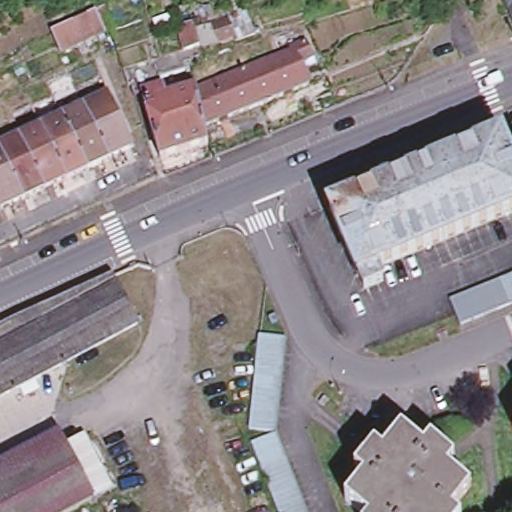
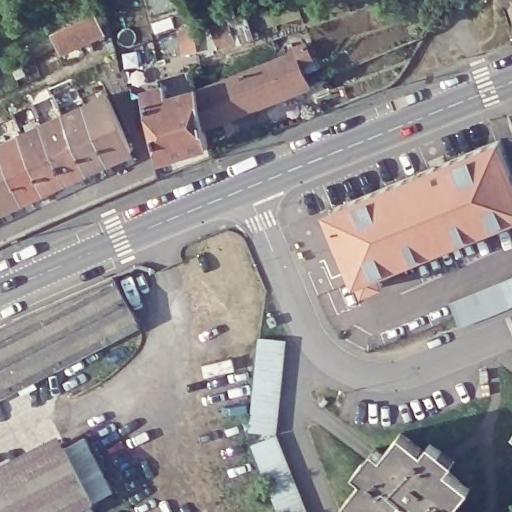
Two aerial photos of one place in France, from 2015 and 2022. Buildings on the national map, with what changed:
unchanged [(68,26),(81,20),(95,14),(104,34),(89,40),(76,46),(63,53),(54,33),(66,27),(68,26)]
unchanged [(156,80),(156,81),(159,90),(138,97),(130,100),(118,74),(144,65),(179,53),(173,35),(171,30),(193,22),(194,26),(189,28),(193,34),(203,67),(190,70),(188,70),(156,80)]
unchanged [(248,22),(258,40),(242,48),(232,29),(248,22)]
unchanged [(289,57),(288,52),(303,46),(311,62),(298,67),(306,86),(204,129),(194,93),(289,57)]
unchanged [(204,129),(208,143),(160,159),(138,97),(159,90),(163,100),(193,88),(194,93),(204,129)]
unchanged [(124,144),(100,155),(75,101),(99,90),(124,144)]
unchanged [(100,155),(78,165),(53,112),(75,101),(100,155)]
unchanged [(78,165),(59,174),(34,121),(53,112),(78,165)]
unchanged [(59,174),(38,184),(14,130),(34,121),(59,174)]
unchanged [(358,269),(328,200),(499,129),(512,161),(512,205),(409,247),(416,260),(363,280),(358,269)]
unchanged [(0,155),(0,136),(14,130),(38,184),(18,194),(0,155)]
unchanged [(18,194),(0,202),(0,155),(18,194)]
unchanged [(447,292),(512,266),(512,296),(458,317),(452,306),(447,292)]
unchanged [(109,271),(136,319),(0,390),(0,321),(36,303),(109,271)]
unchanged [(258,455),(253,443),(248,430),(246,425),(243,417),(243,415),(245,402),(247,389),(249,375),(251,362),(253,347),(255,333),(257,319),(284,321),(281,337),(280,350),(279,365),(277,379),(276,393),(274,406),(273,419),(278,431),(282,444),(310,512),(280,512),(258,455)]
unchanged [(420,447),(428,440),(449,459),(443,467),(465,486),(448,508),(453,512),(359,512),(341,496),(359,474),(351,467),(370,443),(379,451),(397,428),(420,447)]
unchanged [(63,442),(91,495),(59,512),(0,512),(0,474),(63,442)]

